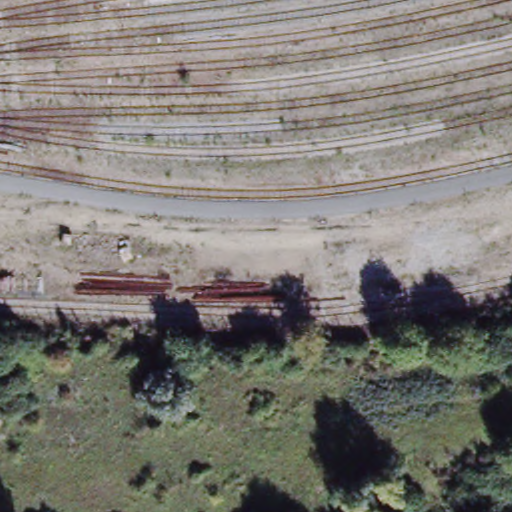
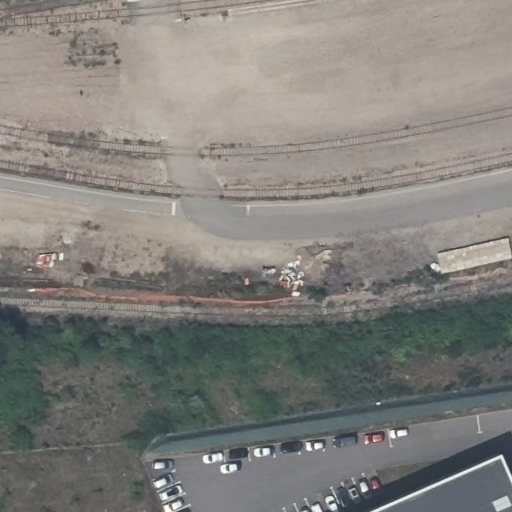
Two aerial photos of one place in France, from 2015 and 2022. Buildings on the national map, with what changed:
new [(497,456),(512,490),(512,512),(368,512),(497,456)]

